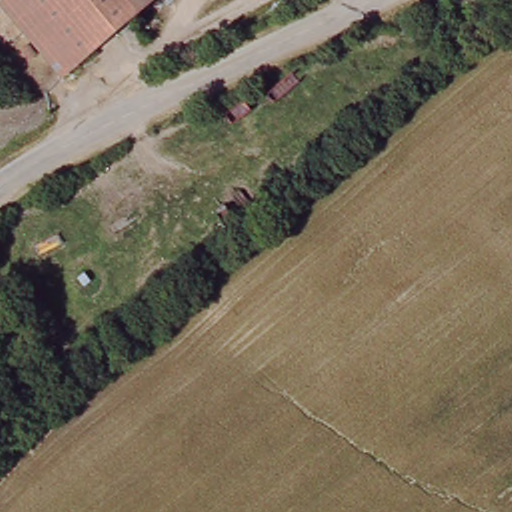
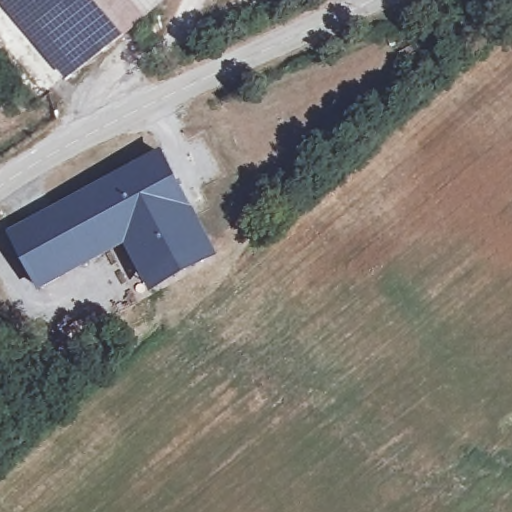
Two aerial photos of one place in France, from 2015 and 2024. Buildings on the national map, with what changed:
unchanged [(148,8),(69,70),(11,0),(142,0),(148,8)]
unchanged [(148,8),(142,0),(158,0),(148,8)]
new [(154,294),(128,246),(41,292),(8,231),(163,149),(194,206),(222,255),(154,294)]

